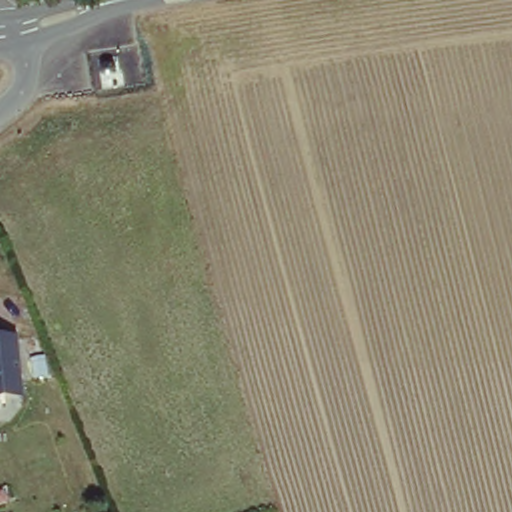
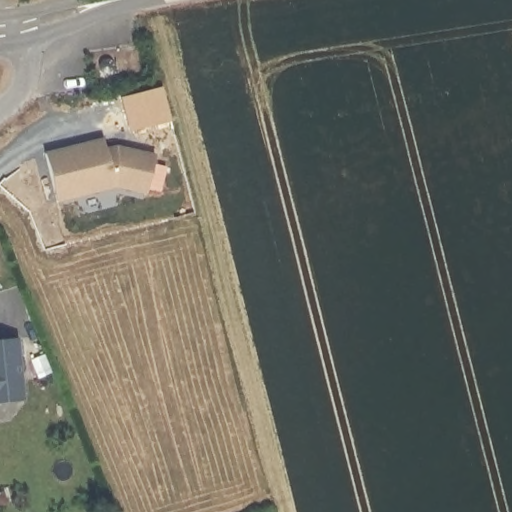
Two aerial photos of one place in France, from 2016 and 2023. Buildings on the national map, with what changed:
new [(152,89),(154,90),(156,90),(157,90),(157,87),(158,87),(160,90),(161,90),(169,121),(130,130),(122,96),(152,89)]
new [(102,139),(105,149),(115,146),(155,155),(146,192),(116,184),(57,198),(45,152),(102,139)]
unchanged [(8,400),(0,400),(0,338),(19,335),(23,378),(25,398),(8,400)]

